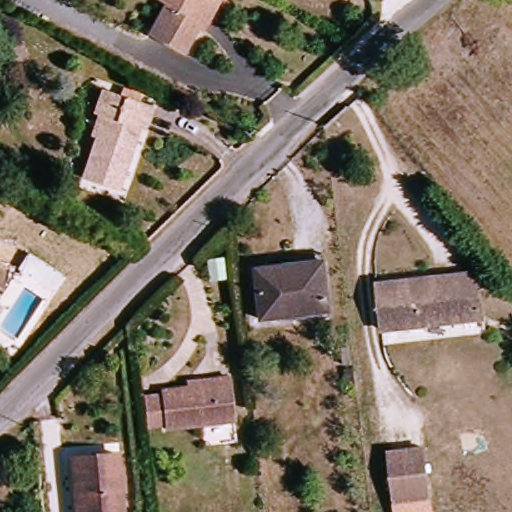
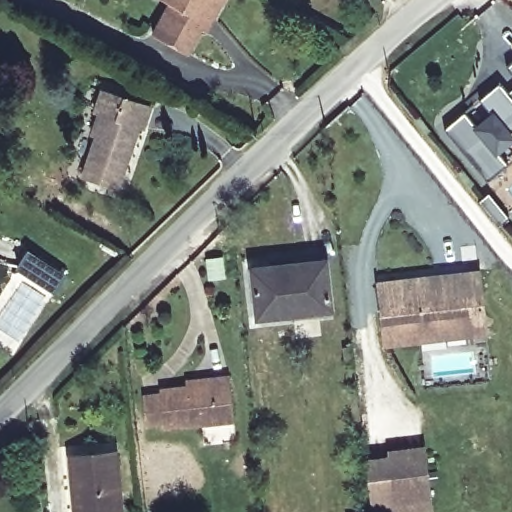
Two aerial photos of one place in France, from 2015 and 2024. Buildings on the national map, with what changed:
unchanged [(200,29),(185,57),(150,37),(167,6),(157,0),(222,0),(210,21),(205,31),(200,29)]
new [(512,63),(512,77),(505,69),(512,63)]
new [(512,96),(512,162),(487,182),(445,130),(501,82),(512,96)]
unchanged [(154,106),(146,130),(142,129),(122,188),(82,175),(96,136),(92,135),(99,114),(93,112),(102,88),(154,106)]
new [(34,247),(72,274),(60,290),(23,263),(34,247)]
unchanged [(331,309),(258,320),(252,273),(326,262),(331,309)]
unchanged [(382,323),(378,287),(432,281),(452,278),(474,276),(478,322),(418,328),(382,332),(382,323)]
unchanged [(352,366),(345,367),(342,350),(350,348),(352,366)]
unchanged [(159,396),(159,393),(185,391),(184,386),(210,382),(227,380),(233,424),(164,432),(163,428),(146,431),(142,398),(159,396)]
unchanged [(432,512),(371,512),(365,457),(388,455),(387,448),(426,446),(432,512)]
unchanged [(82,512),(76,461),(112,456),(119,512),(82,512)]

